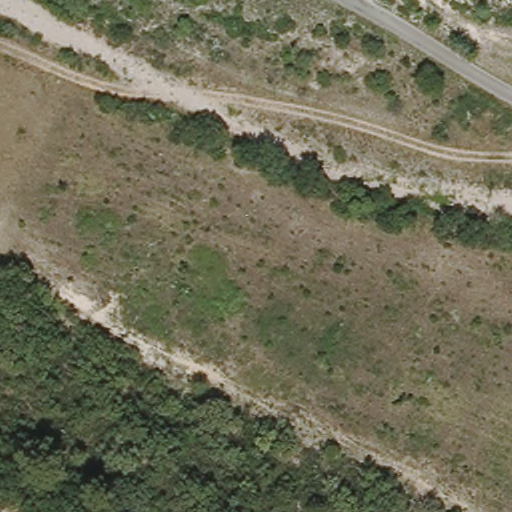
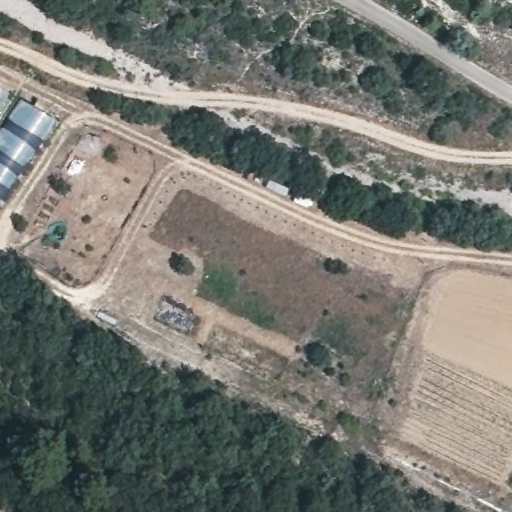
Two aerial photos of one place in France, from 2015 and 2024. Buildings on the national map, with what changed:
new [(6,95),(0,103),(0,91),(6,95)]
new [(54,120),(0,201),(0,133),(21,101),(54,120)]

